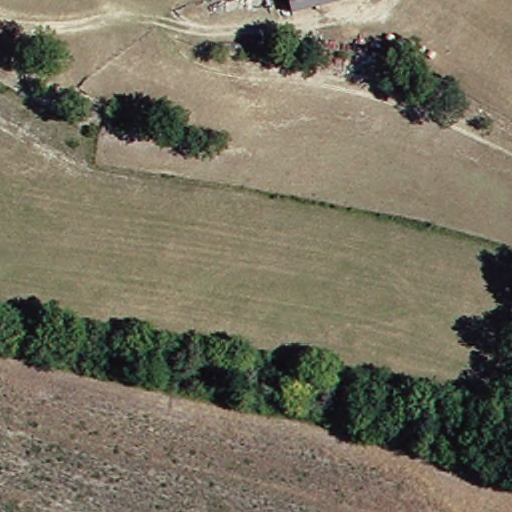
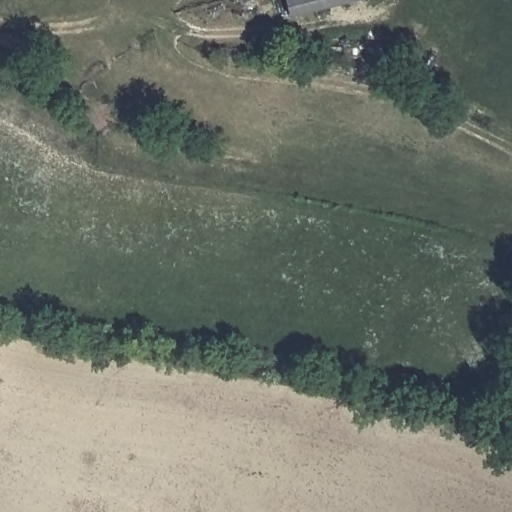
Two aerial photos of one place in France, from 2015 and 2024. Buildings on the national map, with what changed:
unchanged [(365,4),(290,21),(283,0),(364,0),(365,4)]

